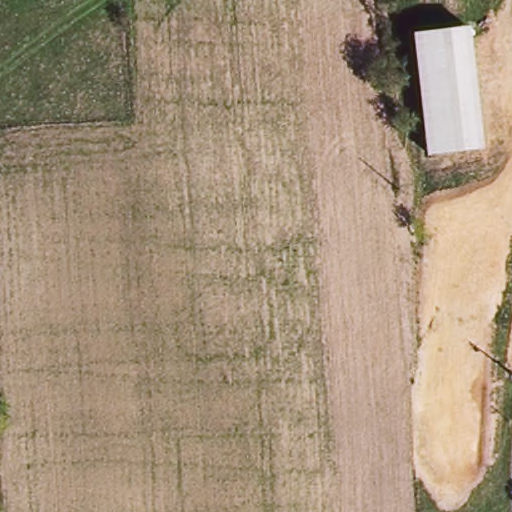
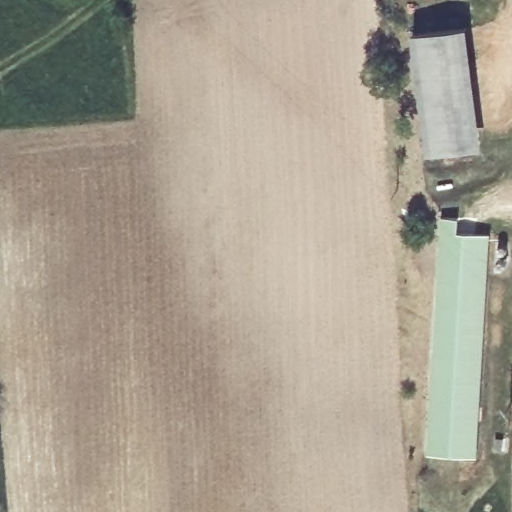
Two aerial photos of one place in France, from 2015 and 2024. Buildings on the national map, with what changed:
unchanged [(428,154),(413,31),(470,24),(484,148),(428,154)]
new [(458,217),(458,231),(490,233),(475,459),(427,456),(441,216),(458,217)]
new [(501,244),(503,243),(506,244),(508,246),(508,250),(508,262),(507,264),(504,267),(501,268),(499,267),(496,264),(499,245),(501,244)]

